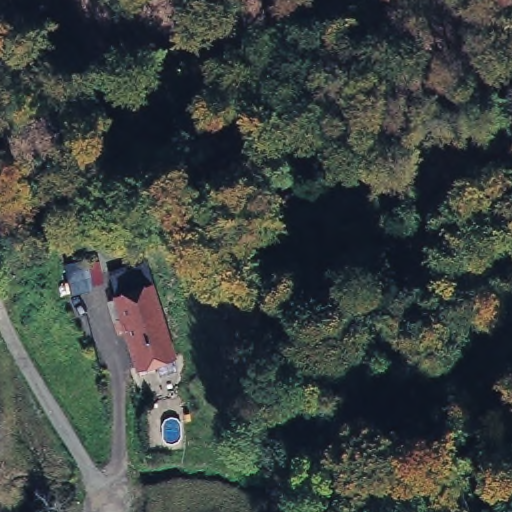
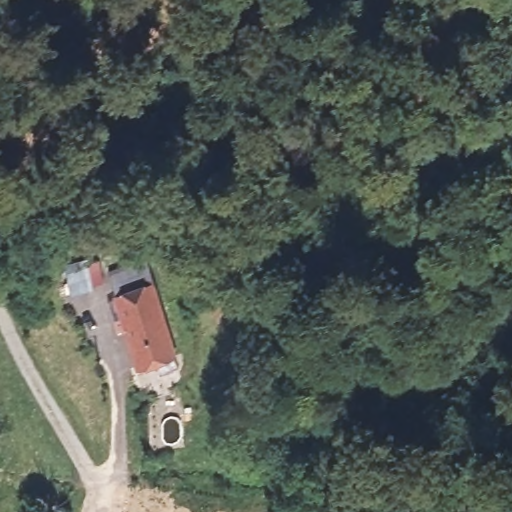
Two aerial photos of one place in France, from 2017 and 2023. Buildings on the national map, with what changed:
unchanged [(82,253),(96,289),(71,294),(58,259),(82,253)]
unchanged [(168,360),(133,370),(111,296),(146,286),(168,360)]

